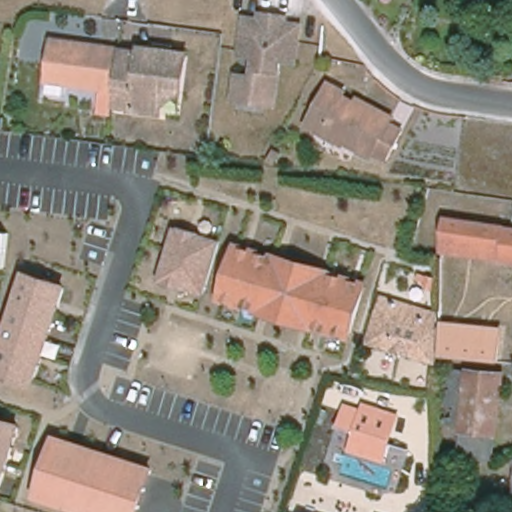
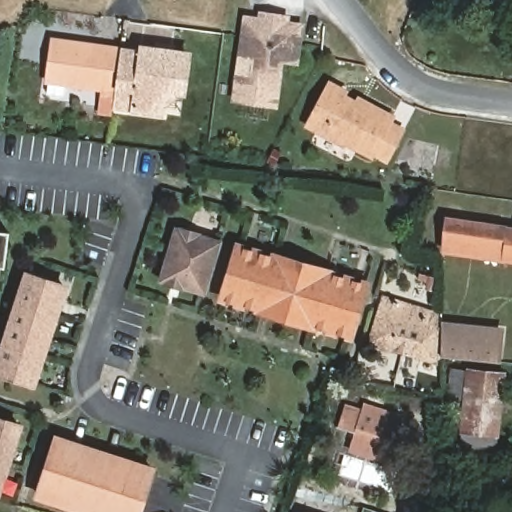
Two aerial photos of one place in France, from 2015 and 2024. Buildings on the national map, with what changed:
unchanged [(285,21),(284,27),(298,29),(296,40),(293,65),(280,63),(274,103),(269,107),(239,104),(235,98),(237,79),(252,81),(255,59),(240,57),(243,33),(245,21),(259,23),(260,17),(285,21)]
unchanged [(123,54),(123,56),(118,91),(118,93),(67,87),(65,99),(49,97),(51,85),(49,84),(55,44),(123,54)]
unchanged [(163,117),(135,114),(137,94),(118,91),(123,56),(141,58),(142,53),(189,60),(185,95),(182,94),(165,109),(163,117)]
unchanged [(347,90),(344,96),(358,103),(361,97),(371,103),(395,115),(393,118),(407,125),(390,159),(376,152),(374,154),(348,140),(346,144),(310,125),(332,82),(347,90)]
unchanged [(445,217),(512,228),(512,264),(442,254),(445,217)]
unchanged [(204,293),(162,281),(177,230),(219,243),(204,293)]
unchanged [(10,233),(7,267),(2,266),(0,278),(0,232),(10,233)]
unchanged [(220,299),(237,245),(276,257),(260,311),(220,299)]
unchanged [(311,327),(260,311),(276,257),(327,272),(311,327)]
unchanged [(368,284),(351,339),(311,327),(327,272),(368,284)]
unchanged [(65,291),(34,383),(0,373),(0,359),(4,348),(27,278),(65,291)]
unchanged [(433,348),(436,355),(434,362),(371,341),(385,298),(436,315),(433,348)]
unchanged [(442,358),(445,326),(500,334),(497,363),(442,358)]
unchanged [(459,458),(462,434),(460,434),(467,373),(503,377),(497,439),(494,462),(459,458)]
unchanged [(384,463),(348,451),(353,431),(337,425),(345,403),(362,408),(364,402),(400,413),(384,463)]
unchanged [(25,423),(4,486),(0,485),(0,415),(25,423)]
unchanged [(138,512),(85,512),(37,496),(56,440),(151,472),(138,512)]

